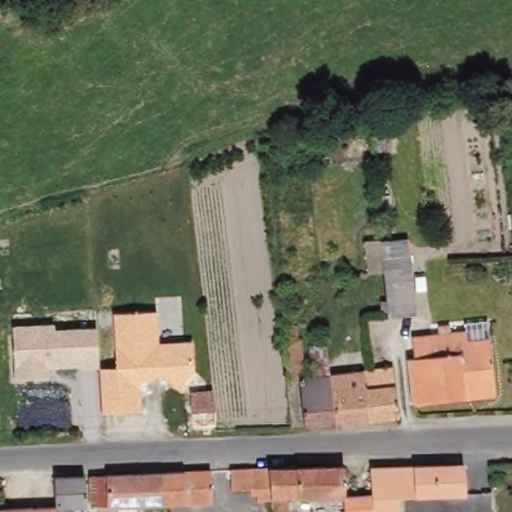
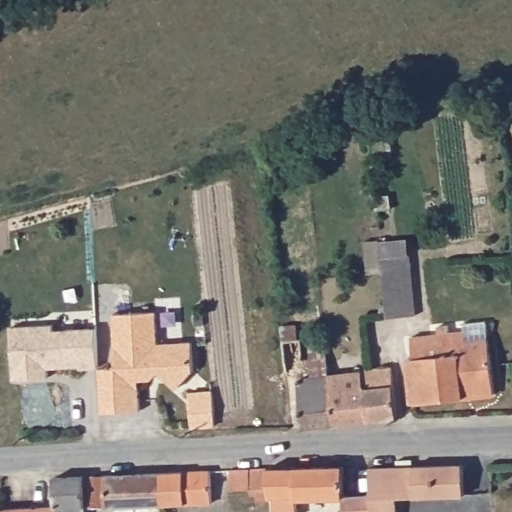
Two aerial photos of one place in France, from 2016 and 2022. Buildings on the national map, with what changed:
unchanged [(367,273),(365,242),(380,240),(410,237),(412,252),(386,254),(387,271),(367,273)]
unchanged [(417,317),(391,319),(386,254),(412,252),(417,317)]
unchanged [(174,393),(155,374),(140,379),(144,406),(100,410),(99,368),(115,367),(112,315),(154,312),(154,344),(194,340),(196,373),(174,393)]
unchanged [(53,367),(53,376),(14,378),(11,327),(54,324),(54,329),(97,329),(99,366),(53,367)]
unchanged [(336,423),(300,426),(299,380),(287,380),(283,333),(301,332),(303,376),(332,374),(336,423)]
unchanged [(496,396),(412,403),(409,355),(414,355),(413,336),(467,332),(468,342),(491,340),(496,396)]
unchanged [(336,423),(332,374),(331,369),(318,370),(317,355),(308,355),(308,342),(329,341),(330,359),(362,358),(363,371),(395,369),(396,382),(399,419),(374,421),(336,423)]
unchanged [(194,435),(193,415),(192,395),(213,394),(215,414),(218,433),(194,435)]
unchanged [(469,496),(402,499),(374,500),(372,463),(467,459),(469,496)]
unchanged [(349,500),(290,503),(291,512),(274,512),(274,507),(272,468),(347,465),(349,500)]
unchanged [(274,507),(258,508),(257,492),(236,493),(235,470),(272,468),(274,507)]
unchanged [(217,508),(172,511),(169,473),(214,471),(217,508)]
unchanged [(172,511),(163,512),(101,512),(96,477),(169,473),(172,511)]
unchanged [(3,510),(19,510),(56,509),(55,479),(88,477),(88,512),(3,512),(3,510)]
unchanged [(374,500),(375,512),(344,512),(344,500),(349,500),(349,495),(374,494),(374,500)]
unchanged [(402,512),(375,512),(374,500),(402,499),(402,512)]

